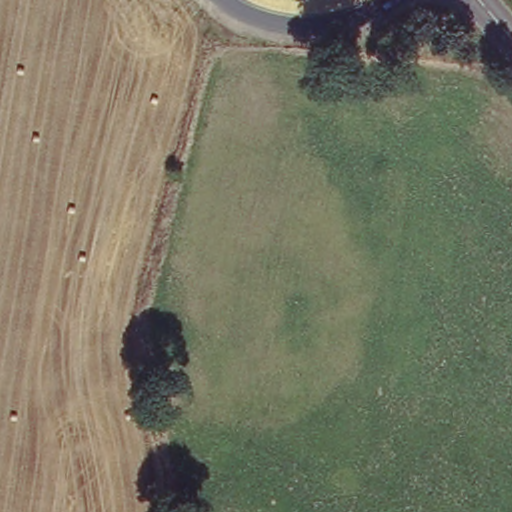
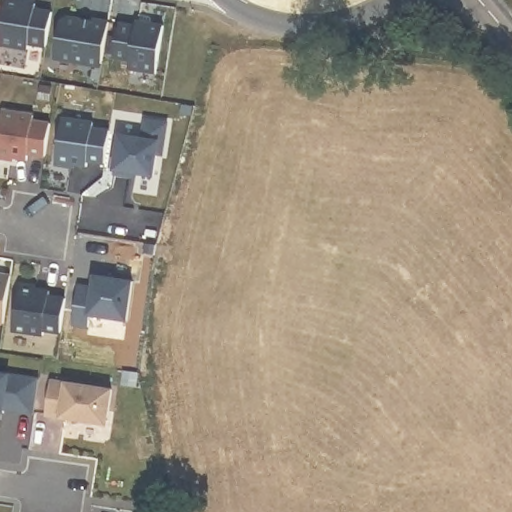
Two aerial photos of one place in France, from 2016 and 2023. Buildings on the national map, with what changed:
new [(46,47),(29,45),(28,50),(0,45),(0,37),(7,0),(23,0),(23,2),(36,4),(35,10),(52,13),(46,47)]
new [(102,63),(94,62),(93,65),(55,59),(61,21),(67,17),(93,21),(93,19),(109,22),(102,63)]
new [(156,73),(129,69),(130,60),(114,58),(120,23),(136,26),(137,21),(164,26),(156,73)]
new [(46,157),(29,154),(28,159),(14,157),(11,160),(0,158),(0,133),(3,111),(34,115),(34,121),(51,123),(46,157)]
new [(95,121),(94,127),(111,130),(106,164),(90,162),(88,167),(76,165),(74,169),(56,166),(63,118),(95,121)]
new [(143,139),(145,120),(169,124),(166,142),(160,142),(155,176),(115,171),(120,135),(143,139)]
new [(4,324),(0,323),(0,275),(11,276),(4,324)]
new [(61,333),(44,330),(44,335),(13,331),(19,287),(23,285),(34,286),(37,289),(50,291),(50,296),(66,298),(61,333)]
new [(34,414),(4,410),(4,412),(0,412),(0,373),(39,379),(34,414)]
new [(107,425),(46,416),(51,381),(112,390),(107,425)]

